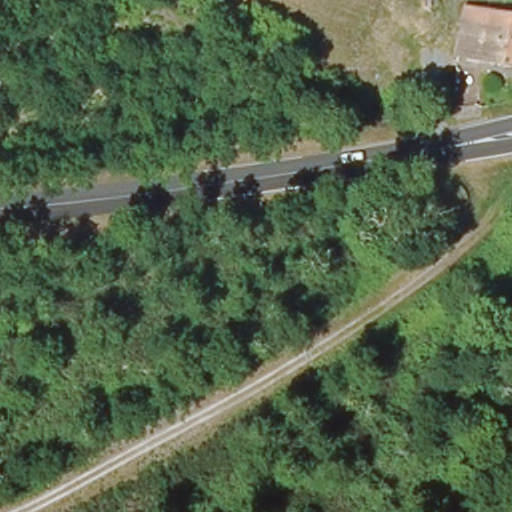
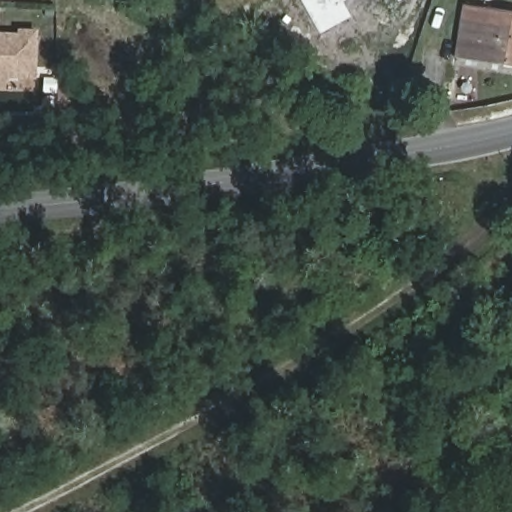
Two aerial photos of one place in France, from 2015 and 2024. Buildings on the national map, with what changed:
unchanged [(468,5),(512,17),(512,69),(458,55),(468,5)]
new [(18,32),(18,28),(38,29),(37,79),(8,78),(8,82),(0,82),(0,32),(18,32)]

